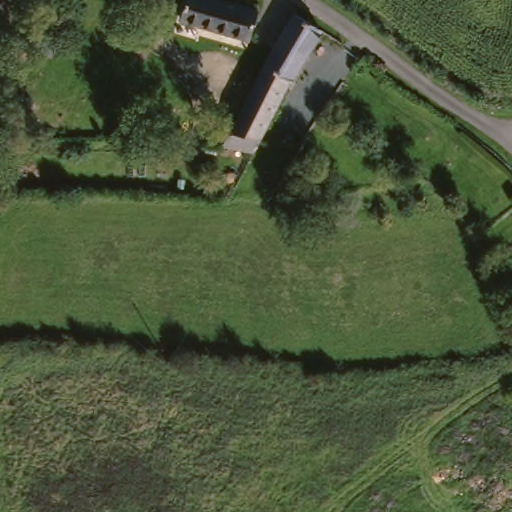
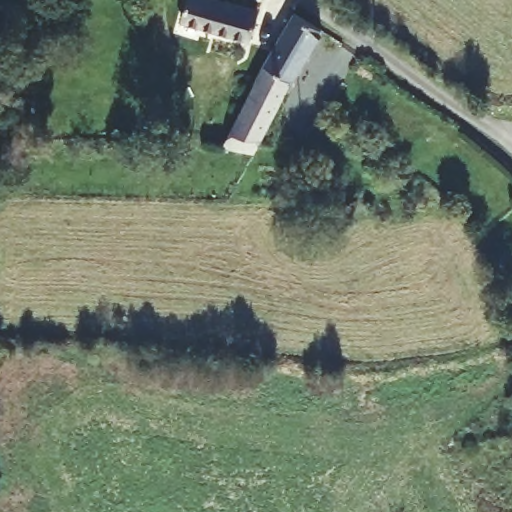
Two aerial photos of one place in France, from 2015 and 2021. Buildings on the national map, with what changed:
unchanged [(248,44),(176,27),(180,9),(182,0),(210,0),(233,6),(257,13),(248,44)]
unchanged [(289,16),(316,30),(271,118),(243,106),(289,16)]
unchanged [(221,150),(230,131),(243,106),(271,118),(267,128),(288,138),(282,150),(260,142),(249,162),(221,150)]

